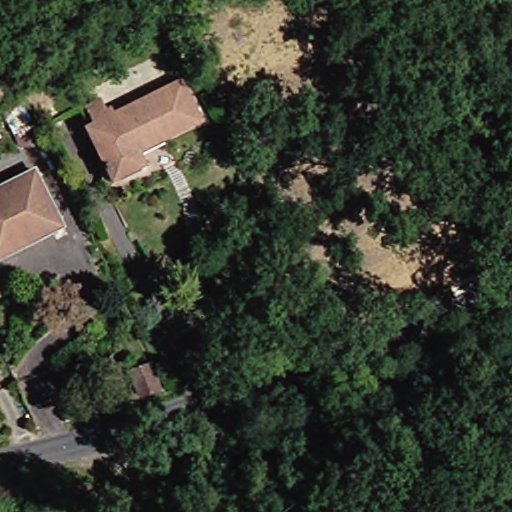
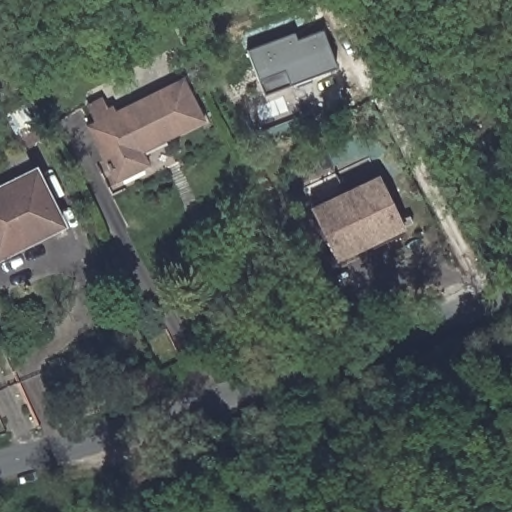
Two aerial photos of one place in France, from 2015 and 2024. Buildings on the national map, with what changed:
new [(285,69),(258,78),(247,50),(293,34),(295,40),(322,31),(335,67),(290,82),(285,69)]
unchanged [(199,120),(162,139),(160,135),(136,146),(145,163),(116,177),(87,122),(176,77),(199,120)]
unchanged [(26,166),(19,151),(36,143),(44,157),(26,166)]
unchanged [(37,193),(0,210),(0,179),(25,168),(37,193)]
new [(406,231),(335,261),(310,204),(380,175),(406,231)]
unchanged [(65,250),(41,261),(38,253),(0,271),(0,210),(37,193),(65,250)]
unchanged [(135,370),(152,363),(164,385),(144,393),(135,370)]

